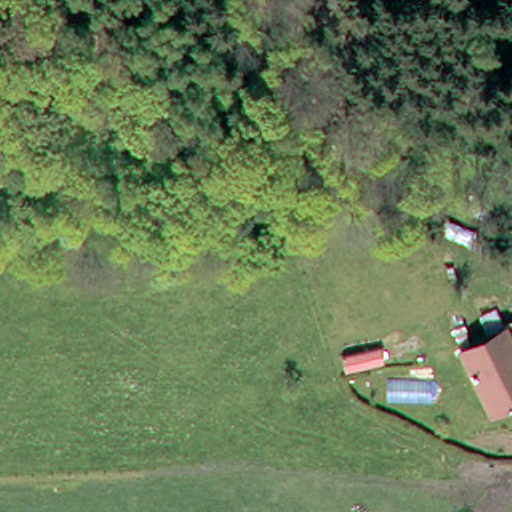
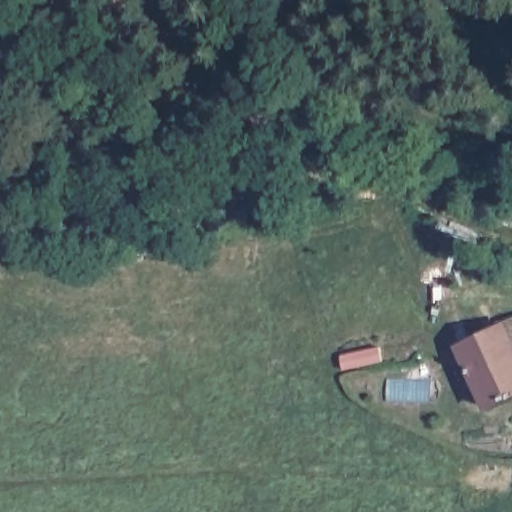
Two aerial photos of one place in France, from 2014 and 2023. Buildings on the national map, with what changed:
unchanged [(440,310),(457,304),(469,335),(483,329),(469,304),(493,294),(512,335),(512,397),(482,412),(440,310)]

